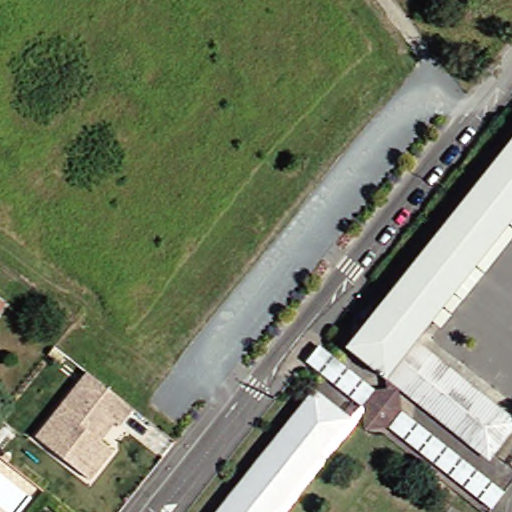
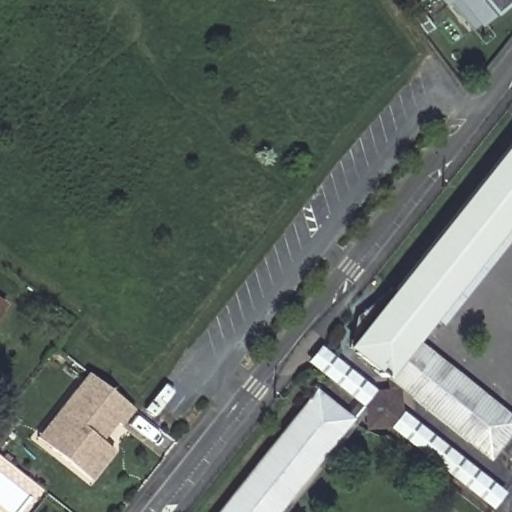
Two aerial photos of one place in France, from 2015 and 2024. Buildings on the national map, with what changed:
new [(470,31),(447,5),(444,7),(438,0),(512,0),(512,1),(493,16),(470,31)]
unchanged [(474,445),(370,361),(354,348),(355,346),(512,150),(512,225),(420,340),(512,412),(512,440),(500,455),(496,460),(495,461),(482,451),(474,445)]
unchanged [(6,305),(0,313),(0,301),(6,305)]
unchanged [(507,493),(496,508),(310,362),(323,346),(507,493)]
unchanged [(116,451),(93,481),(54,450),(40,439),(62,410),(77,392),(91,374),(95,377),(114,392),(136,410),(123,426),(119,422),(104,442),(116,451)]
unchanged [(357,420),(285,512),(225,512),(321,390),(357,420)]

